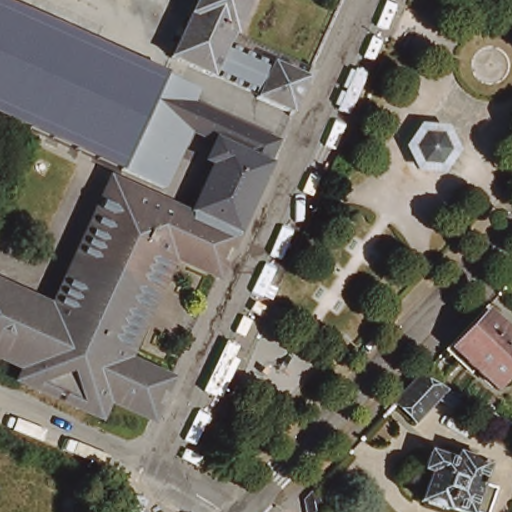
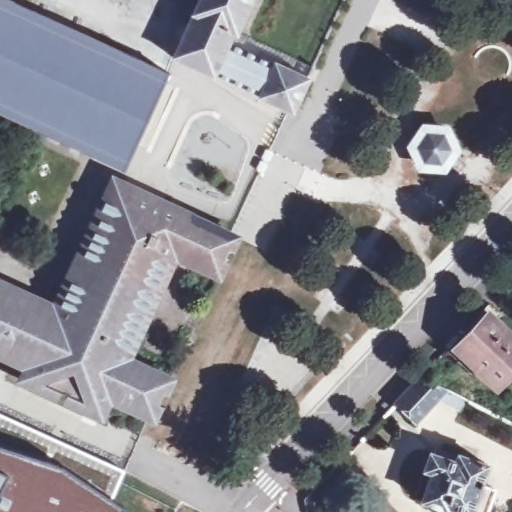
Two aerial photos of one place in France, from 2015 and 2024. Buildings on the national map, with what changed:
unchanged [(195,101),(281,141),(237,237),(231,235),(193,215),(218,163),(211,160),(220,142),(192,130),(167,187),(118,166),(0,112),(0,0),(5,0),(200,88),(195,101)]
unchanged [(309,79),(293,114),(172,57),(199,0),(252,0),(232,44),(309,79)]
unchanged [(454,128),(463,152),(444,176),(422,172),(406,146),(425,127),(454,128)]
unchanged [(80,278),(87,262),(101,232),(93,227),(110,189),(115,180),(128,186),(193,215),(231,235),(237,237),(220,276),(175,256),(126,361),(172,381),(163,400),(155,417),(110,397),(101,415),(30,383),(36,370),(27,366),(50,316),(54,307),(64,312),(80,278)]
unchanged [(43,302),(52,306),(47,315),(25,365),(16,361),(0,353),(0,282),(20,291),(43,302)]
unchanged [(455,350),(490,313),(512,334),(512,372),(496,388),(455,350)]
unchanged [(455,414),(432,403),(412,424),(392,406),(415,382),(441,395),(460,405),(455,414)]
new [(123,507),(119,512),(0,512),(0,415),(125,471),(111,500),(123,507)]
unchanged [(460,461),(463,452),(492,463),(485,482),(499,488),(490,512),(459,512),(450,509),(449,512),(425,502),(435,473),(428,470),(435,452),(460,461)]

